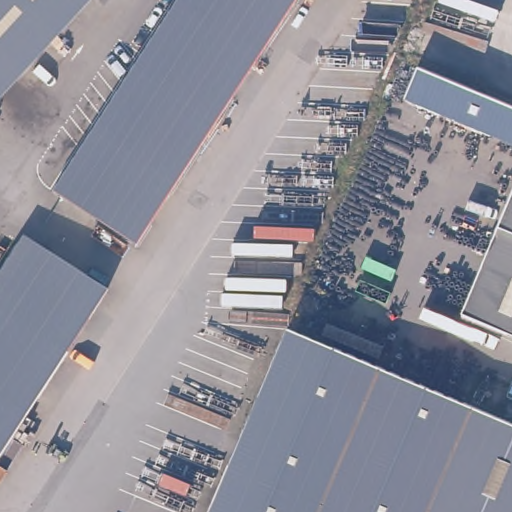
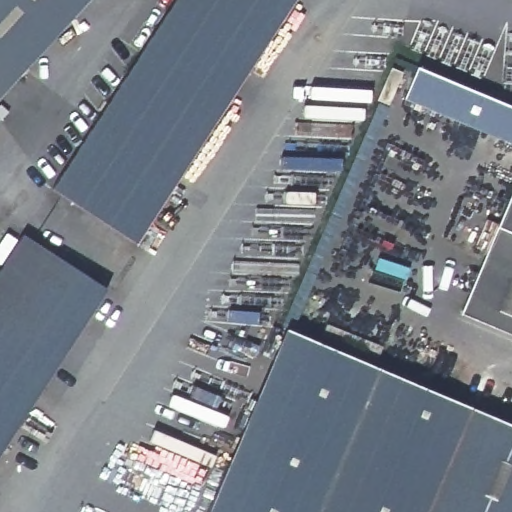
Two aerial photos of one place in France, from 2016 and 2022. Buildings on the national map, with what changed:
unchanged [(0,96),(0,0),(87,0),(0,96)]
unchanged [(136,249),(52,194),(179,0),(298,0),(136,249)]
unchanged [(417,67),(512,106),(512,142),(405,99),(417,67)]
unchanged [(512,191),(512,335),(461,314),(512,191)]
unchanged [(0,452),(0,270),(23,234),(107,288),(0,452)]
unchanged [(512,512),(208,512),(286,328),(512,424),(512,512)]

